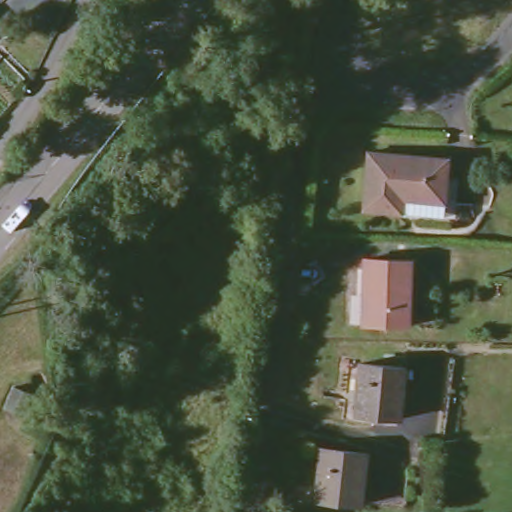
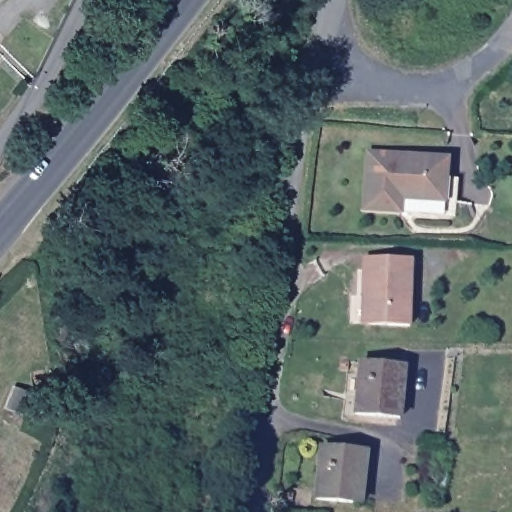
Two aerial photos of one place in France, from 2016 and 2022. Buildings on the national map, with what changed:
unchanged [(450,207),(438,206),(437,218),(356,211),(362,152),(442,161),(440,180),(452,181),(450,207)]
unchanged [(361,293),(363,257),(412,259),(408,323),(364,321),(359,320),(361,293)]
unchanged [(351,412),(354,362),(399,365),(395,416),(351,412)]
unchanged [(311,493),(317,441),(361,446),(354,497),(311,493)]

